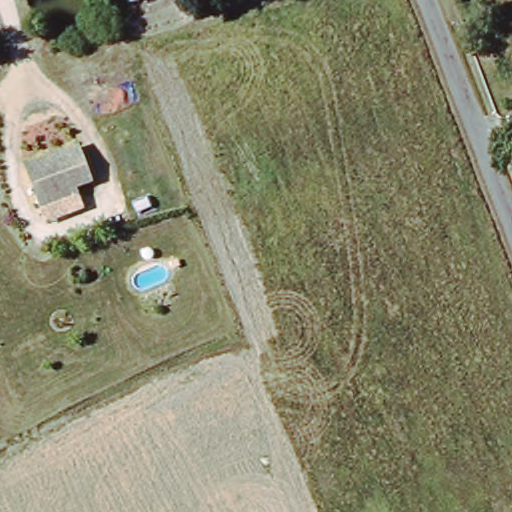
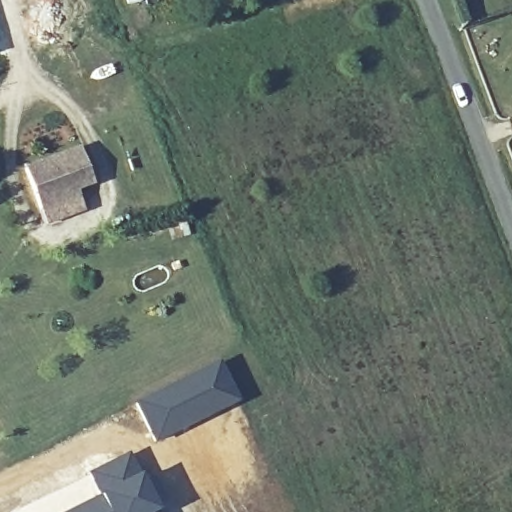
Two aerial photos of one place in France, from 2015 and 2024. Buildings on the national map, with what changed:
unchanged [(56,202),(40,207),(25,166),(81,147),(93,182),(77,187),(79,194),(56,202)]
new [(218,361),(239,402),(155,443),(135,402),(218,361)]
new [(88,474),(128,455),(156,512),(69,512),(100,497),(88,474)]

